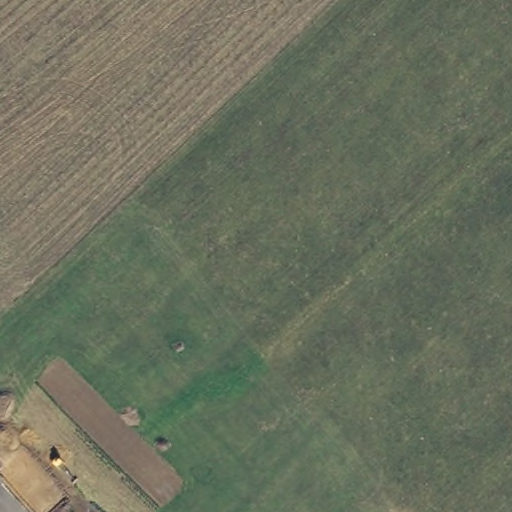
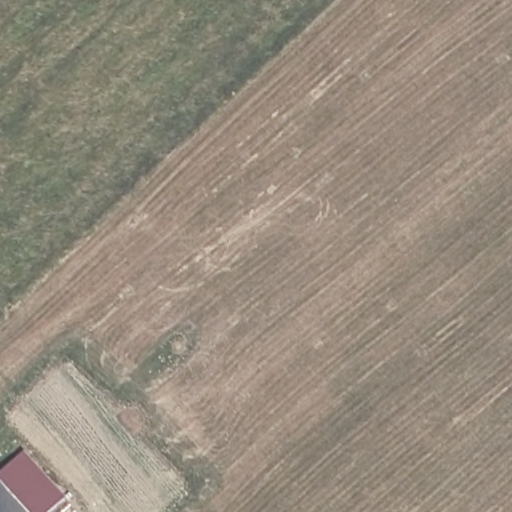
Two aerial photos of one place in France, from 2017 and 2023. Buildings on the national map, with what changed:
new [(0,476),(0,474),(27,452),(67,497),(49,512),(32,512),(0,476)]

